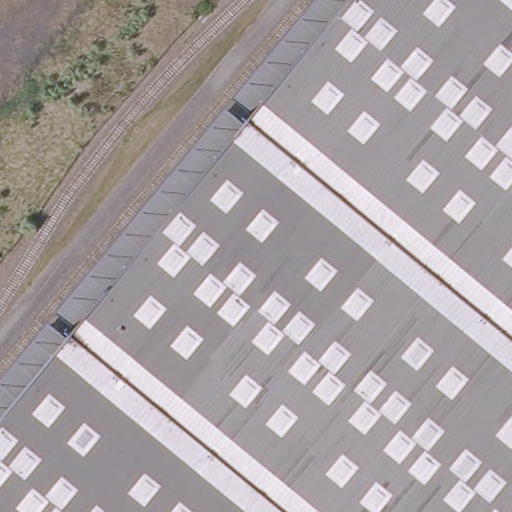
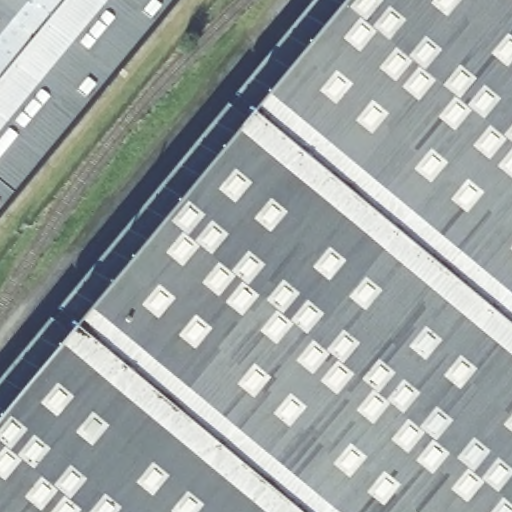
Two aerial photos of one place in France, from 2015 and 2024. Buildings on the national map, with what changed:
new [(0,208),(0,0),(171,0),(0,208)]
unchanged [(0,512),(0,419),(347,0),(512,0),(512,512),(0,512)]

